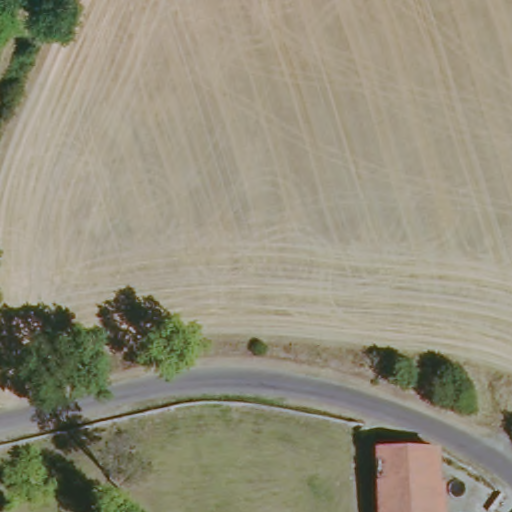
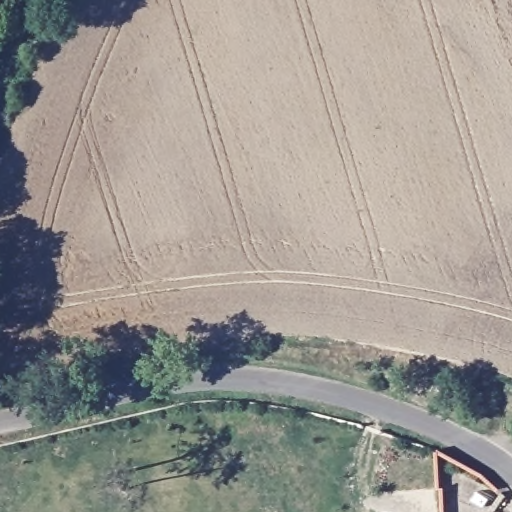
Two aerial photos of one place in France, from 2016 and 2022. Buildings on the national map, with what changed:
unchanged [(438,450),(440,485),(445,485),(447,512),(382,512),(377,453),(438,450)]

